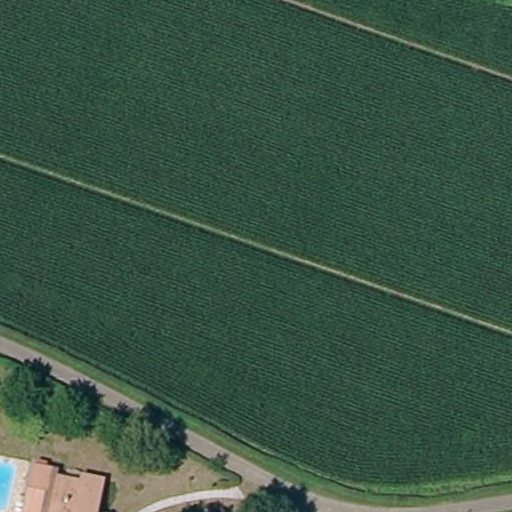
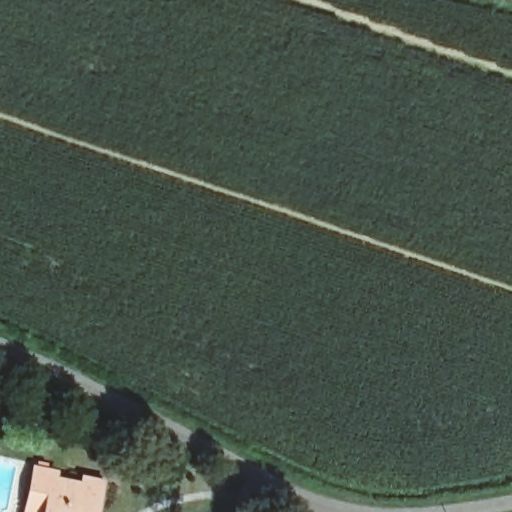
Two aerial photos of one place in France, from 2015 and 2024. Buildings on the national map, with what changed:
unchanged [(102,488),(100,498),(97,512),(27,512),(27,504),(28,499),(32,476),(40,477),(62,481),(83,484),(102,488)]

